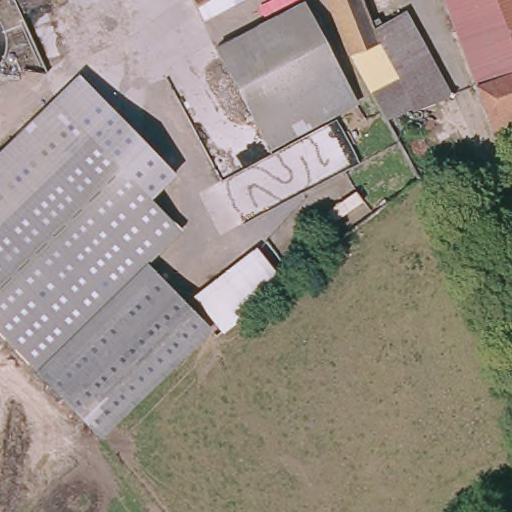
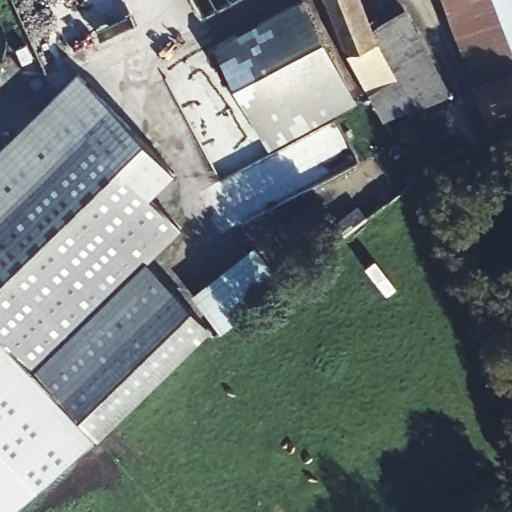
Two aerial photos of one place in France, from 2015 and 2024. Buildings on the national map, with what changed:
unchanged [(205,17),(202,14),(195,0),(239,0),(205,17)]
unchanged [(214,47),(301,0),(305,0),(357,101),(268,151),(214,47)]
unchanged [(370,20),(340,34),(326,0),(362,0),(370,20)]
unchanged [(512,48),(512,53),(468,68),(442,0),(494,0),(512,48)]
unchanged [(512,48),(494,0),(512,0),(512,48)]
unchanged [(370,20),(412,3),(446,88),(382,117),(351,59),(348,51),(340,34),(370,20)]
unchanged [(512,112),(488,122),(468,68),(512,53),(512,112)]
unchanged [(173,170),(147,195),(180,227),(150,255),(34,368),(0,334),(0,148),(57,93),(77,73),(173,170)]
unchanged [(252,243),(283,285),(220,334),(190,290),(252,243)]
unchanged [(210,326),(97,437),(34,368),(145,260),(210,326)]
new [(34,368),(97,437),(6,512),(0,512),(0,334),(34,368)]

